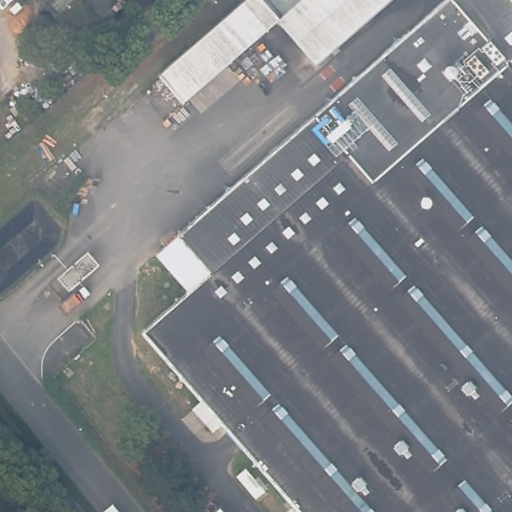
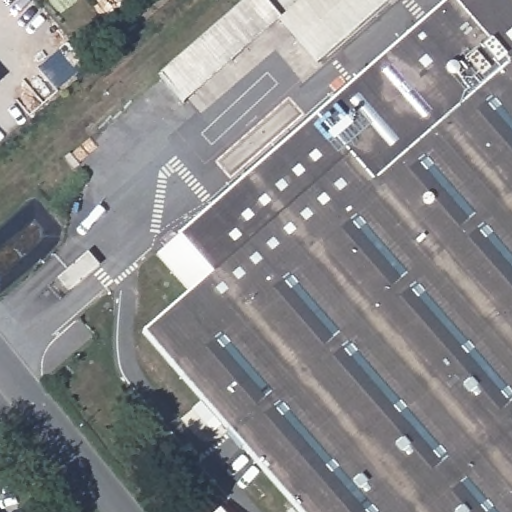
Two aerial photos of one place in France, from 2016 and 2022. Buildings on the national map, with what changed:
unchanged [(304,0),(280,22),(187,105),(160,76),(246,0),(304,0)]
unchanged [(280,22),(304,0),(391,0),(317,65),(280,22)]
unchanged [(512,0),(512,66),(511,67),(452,1),(453,0),(512,0)]
unchanged [(285,498),(145,337),(212,280),(179,241),(452,1),(511,67),(512,66),(512,512),(296,512),(285,498)]
unchanged [(108,266),(69,297),(46,273),(87,241),(108,266)]

